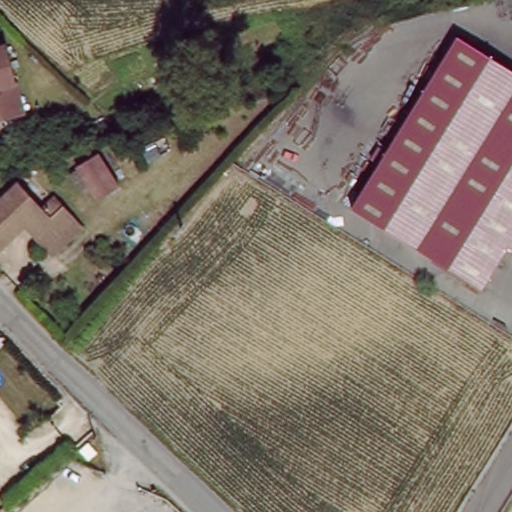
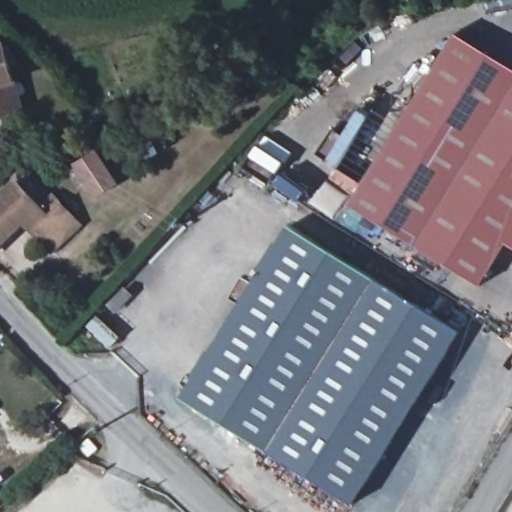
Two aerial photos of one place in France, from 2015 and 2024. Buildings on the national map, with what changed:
unchanged [(458,34),(512,67),(512,247),(508,244),(482,288),(351,207),(458,34)]
unchanged [(0,109),(0,37),(4,35),(24,102),(0,109)]
unchanged [(105,155),(126,196),(91,208),(75,166),(105,155)]
unchanged [(14,179),(52,218),(60,210),(78,229),(51,256),(20,224),(0,242),(0,192),(14,179)]
new [(464,332),(356,507),(183,399),(290,225),(464,332)]
unchanged [(1,509),(0,509),(0,507),(1,509)]

